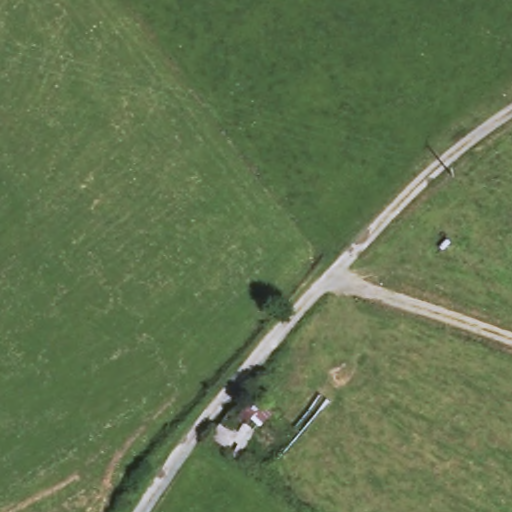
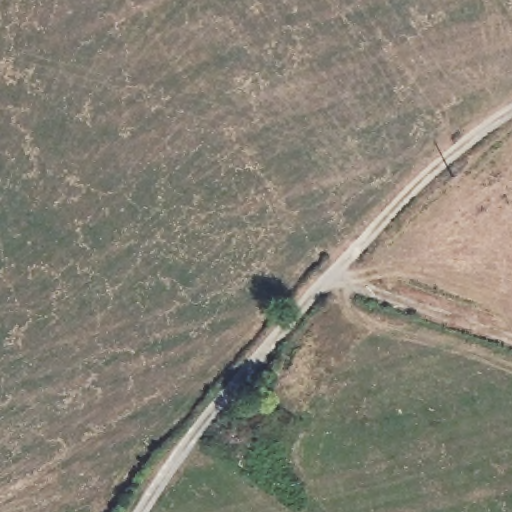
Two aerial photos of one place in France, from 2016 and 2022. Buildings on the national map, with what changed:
unchanged [(208,441),(247,393),(271,410),(234,460),(208,441)]

